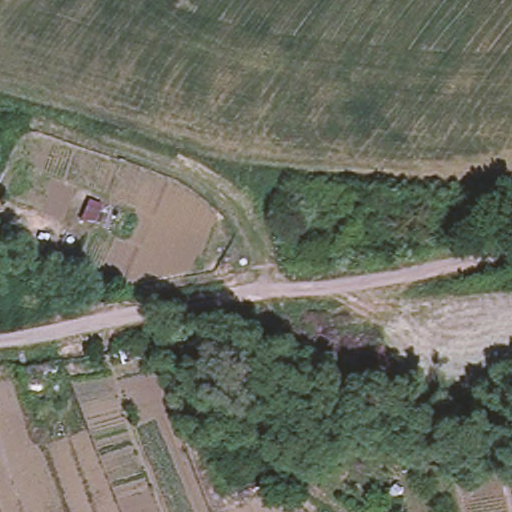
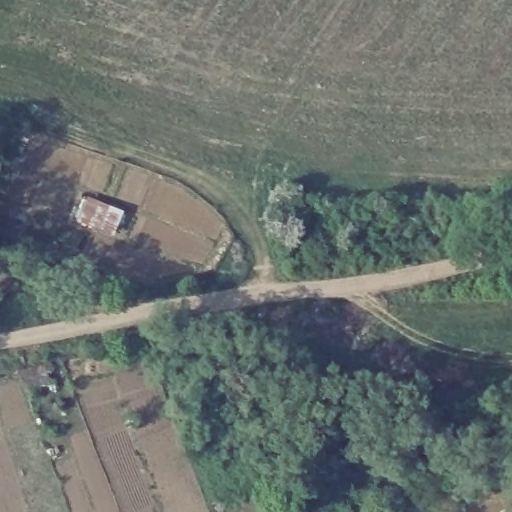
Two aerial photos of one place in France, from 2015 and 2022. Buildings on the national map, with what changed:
unchanged [(97,225),(75,217),(82,204),(87,205),(90,197),(103,203),(97,225)]
unchanged [(143,345),(150,374),(123,379),(118,350),(143,345)]
unchanged [(63,358),(65,372),(53,376),(54,382),(25,388),(20,367),(63,358)]

